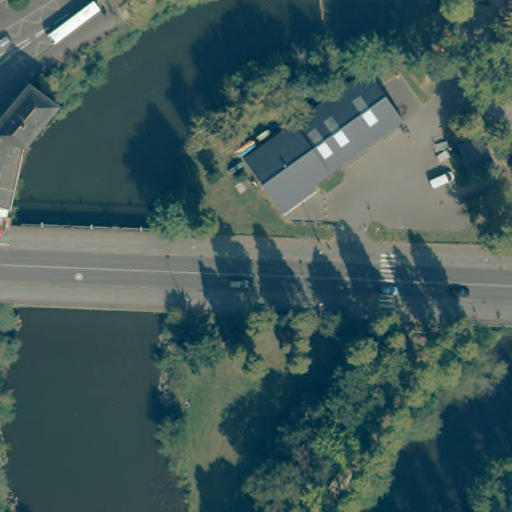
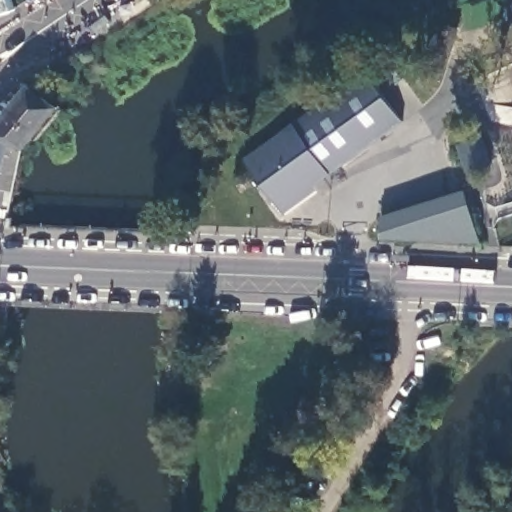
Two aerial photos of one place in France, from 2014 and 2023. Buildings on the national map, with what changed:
new [(0,15),(0,0),(7,0),(11,11),(0,15)]
unchanged [(369,71),(406,121),(284,208),(248,159),(369,71)]
unchanged [(24,79),(49,97),(33,118),(18,142),(0,136),(0,109),(24,79)]
unchanged [(0,204),(0,136),(18,142),(6,201),(4,205),(0,204)]
unchanged [(494,164),(471,171),(462,144),(485,136),(494,164)]
new [(381,215),(466,189),(481,243),(380,240),(381,215)]

